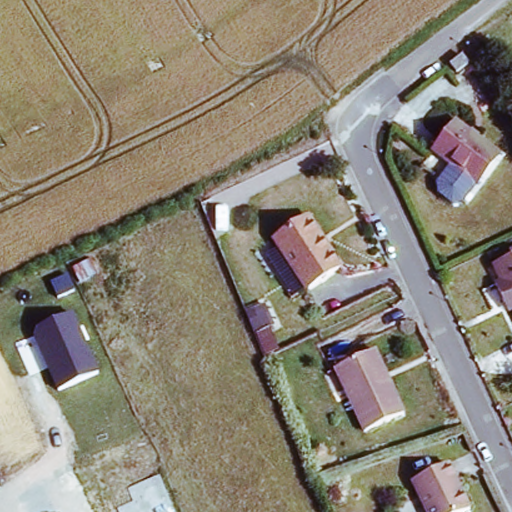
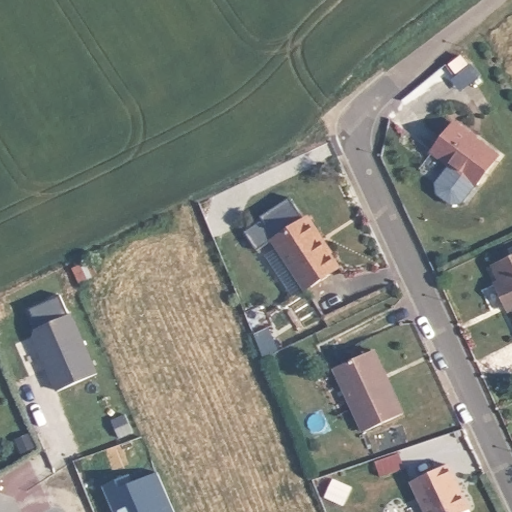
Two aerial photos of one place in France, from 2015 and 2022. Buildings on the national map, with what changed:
unchanged [(465,57),(470,64),(450,78),(443,67),(462,53),(465,57)]
unchanged [(455,206),(445,200),(442,191),(457,170),(430,152),(452,121),(498,153),(462,204),(455,206)]
unchanged [(293,259),(275,269),(262,243),(312,216),(338,267),(305,283),(293,259)]
unchanged [(505,313),(500,302),(490,284),(495,283),(489,269),(512,256),(512,314),(510,311),(505,313)]
unchanged [(57,389),(35,336),(39,328),(72,314),(97,372),(57,389)]
unchanged [(365,431),(337,369),(374,351),(402,415),(365,431)]
unchanged [(412,481),(448,466),(467,508),(459,512),(425,512),(412,481)]
new [(104,486),(132,475),(135,482),(158,474),(174,512),(115,512),(104,486)]

